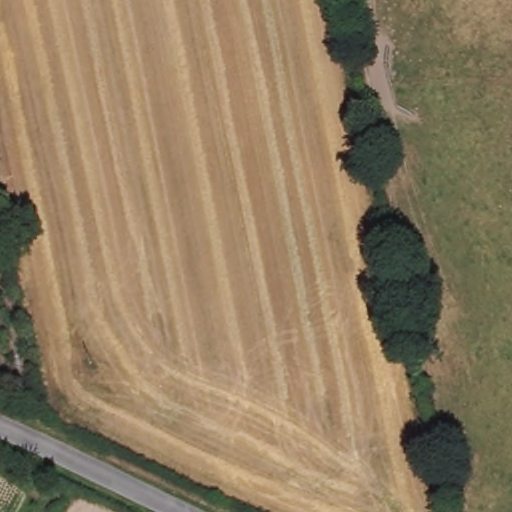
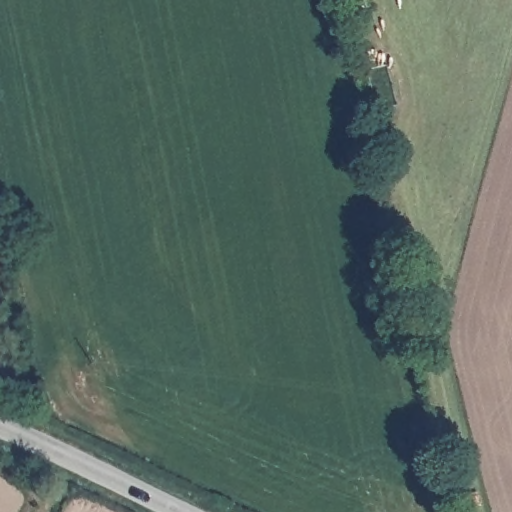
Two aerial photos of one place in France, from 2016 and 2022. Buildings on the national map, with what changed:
unchanged [(2,280),(0,281),(0,268),(2,280)]

